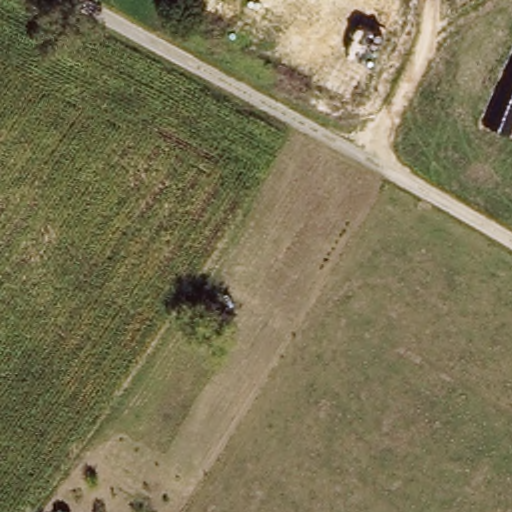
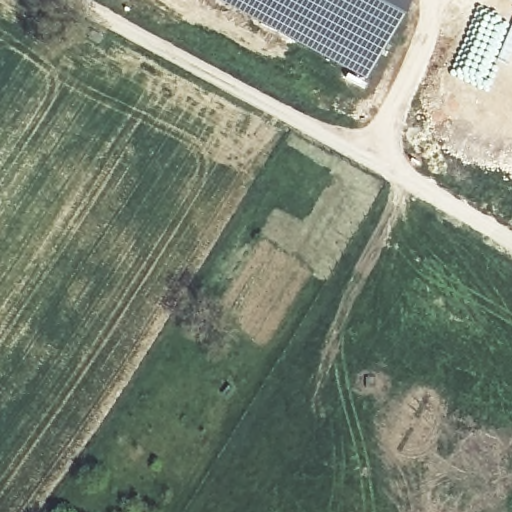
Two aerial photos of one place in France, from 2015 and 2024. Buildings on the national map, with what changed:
new [(394,6),(360,72),(223,0),(382,0),(394,6)]

